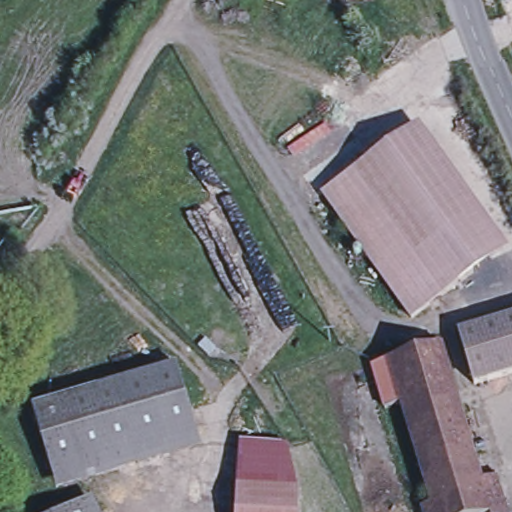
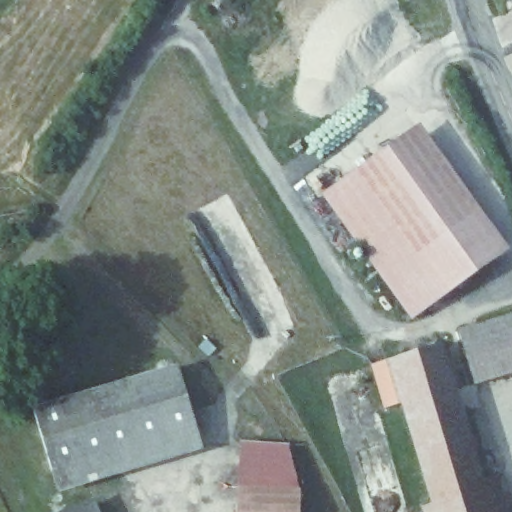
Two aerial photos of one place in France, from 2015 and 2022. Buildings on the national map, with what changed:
unchanged [(414,126),(504,250),(473,272),(461,255),(443,268),(365,162),(414,126)]
unchanged [(365,162),(443,268),(461,255),(473,272),(408,318),(319,195),(365,162)]
unchanged [(508,283),(489,288),(483,267),(502,262),(508,283)]
unchanged [(512,317),(512,368),(471,381),(458,332),(512,317)]
unchanged [(424,507),(436,505),(406,402),(386,408),(374,366),(444,345),(484,479),(498,475),(510,512),(426,512),(424,507)]
unchanged [(176,366),(201,451),(54,494),(29,409),(176,366)]
unchanged [(236,445),(287,450),(296,492),(295,512),(233,512),(236,445)]
unchanged [(83,503),(88,512),(64,512),(83,503)]

